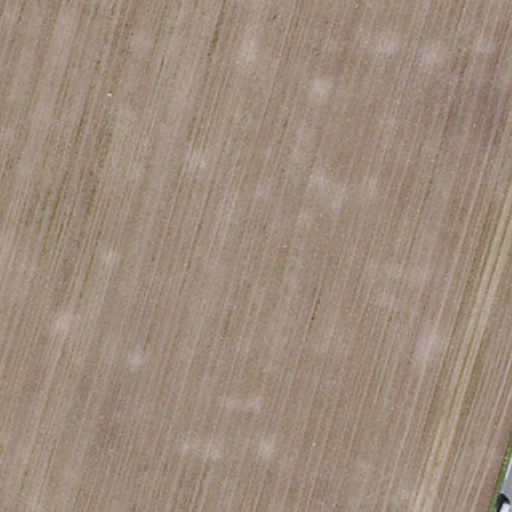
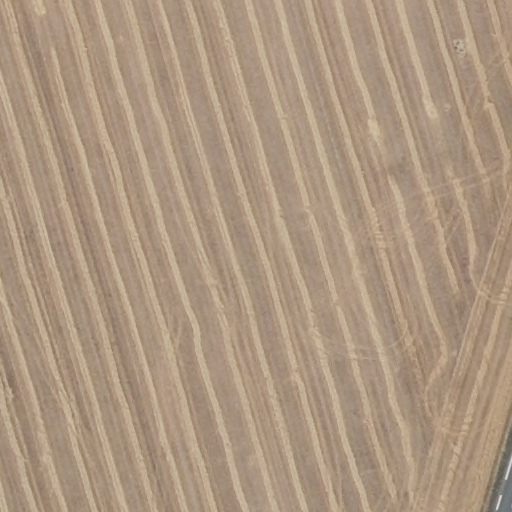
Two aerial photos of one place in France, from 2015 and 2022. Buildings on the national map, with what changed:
[]

